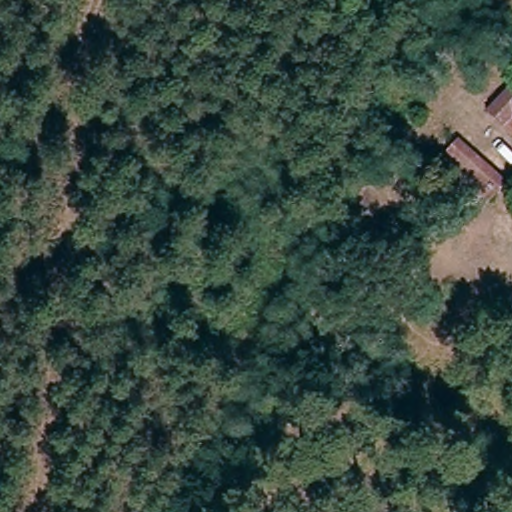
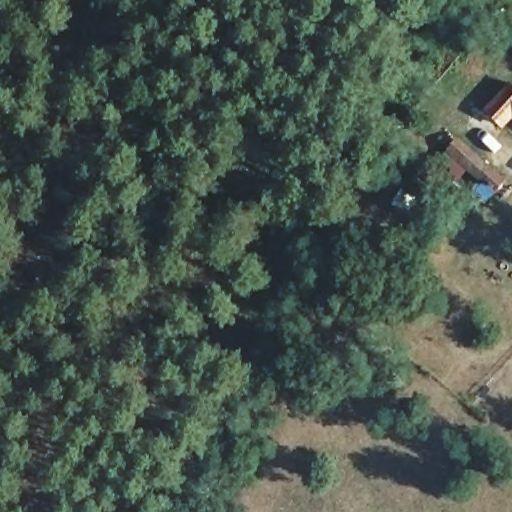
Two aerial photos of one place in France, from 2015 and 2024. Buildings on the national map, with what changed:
unchanged [(509,89),(512,93),(512,141),(485,116),(509,89)]
unchanged [(475,192),(481,186),(445,153),(456,141),(503,183),(493,195),(486,203),(475,192)]

